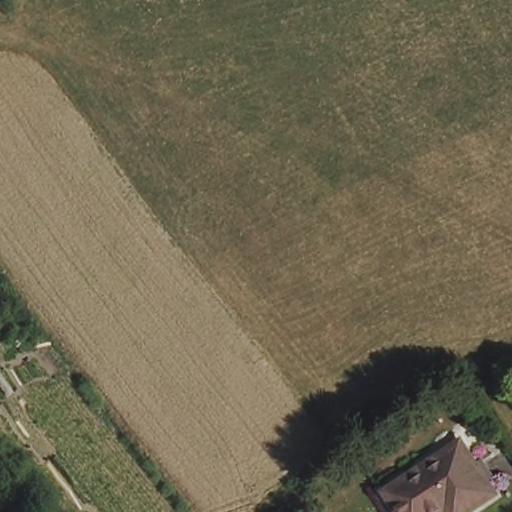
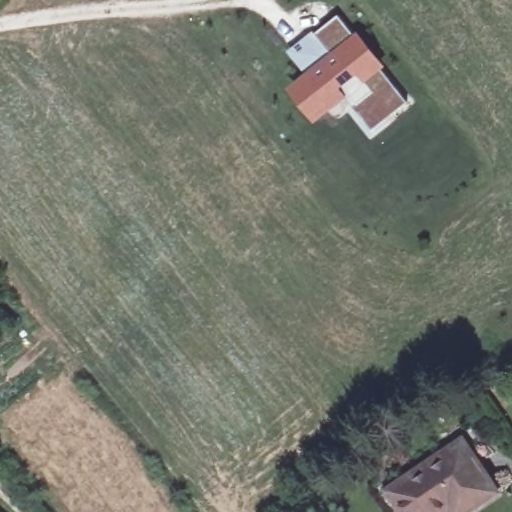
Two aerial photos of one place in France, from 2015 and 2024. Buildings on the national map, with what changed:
new [(351,104),(340,91),(313,112),(292,86),(332,54),(312,30),(336,12),(406,100),(382,118),(370,128),(351,104)]
new [(314,32),(332,54),(306,74),(289,52),(314,32)]
unchanged [(465,440),(499,487),(477,504),(467,493),(442,512),(437,512),(414,477),(465,440)]
unchanged [(391,495),(414,477),(437,512),(405,512),(391,495)]

